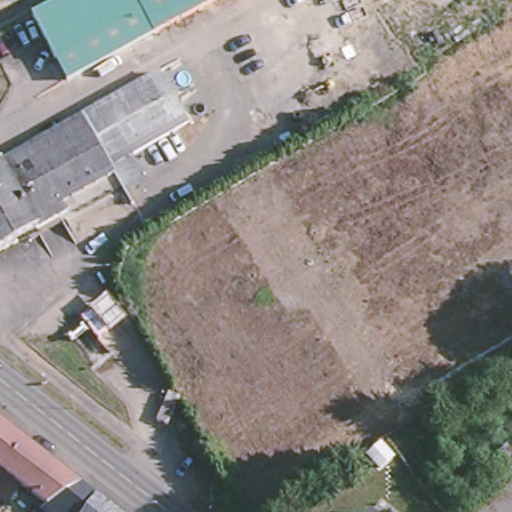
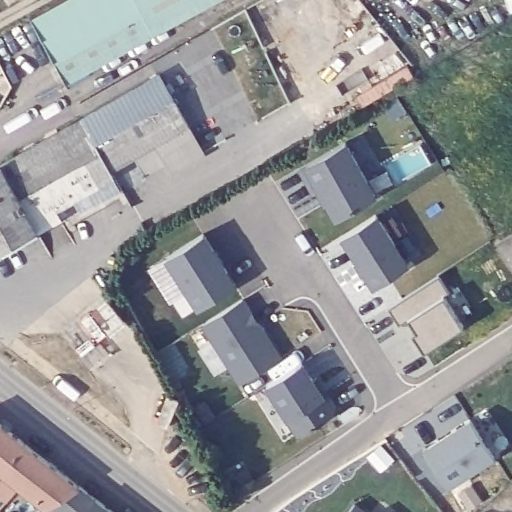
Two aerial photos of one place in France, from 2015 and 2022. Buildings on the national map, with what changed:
unchanged [(58,53),(34,9),(51,0),(142,0),(146,6),(58,53)]
unchanged [(214,0),(159,30),(158,29),(146,6),(142,0),(214,0)]
unchanged [(158,29),(71,75),(58,53),(146,6),(158,29)]
unchanged [(91,135),(106,162),(110,169),(58,197),(63,206),(18,231),(0,241),(0,155),(143,75),(158,99),(91,135)]
unchanged [(91,135),(158,99),(174,126),(128,151),(126,151),(106,162),(91,135)]
new [(378,194),(336,219),(316,186),(311,194),(299,170),(306,165),(347,140),(378,194)]
new [(412,262),(374,287),(341,236),(378,213),(412,262)]
new [(236,283),(199,306),(166,257),(203,233),(236,283)]
new [(451,290),(444,294),(464,324),(425,349),(413,331),(417,328),(409,316),(400,322),(389,306),(440,274),(451,290)]
new [(284,356),(238,384),(199,321),(241,294),(284,356)]
unchanged [(128,320),(112,333),(91,308),(108,296),(128,320)]
new [(313,372),(319,370),(341,401),(339,410),(299,436),(289,420),(266,386),(304,360),(313,372)]
new [(496,455),(448,485),(423,446),(471,415),(496,455)]
unchanged [(0,492),(0,419),(74,477),(55,488),(41,498),(18,478),(3,495),(0,492)]
unchanged [(93,493),(74,512),(49,512),(36,502),(41,498),(55,488),(74,477),(93,493)]
unchanged [(93,493),(116,512),(74,512),(93,493)]

